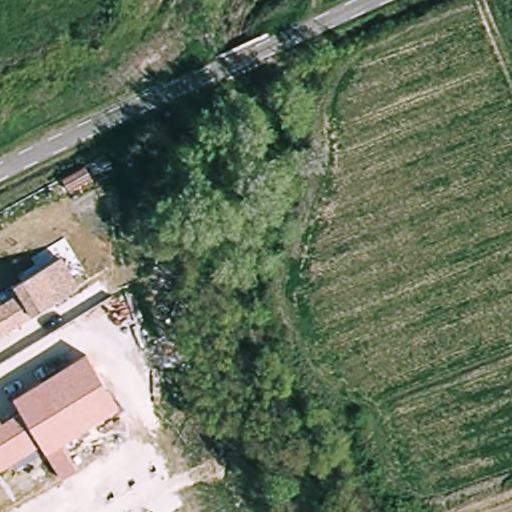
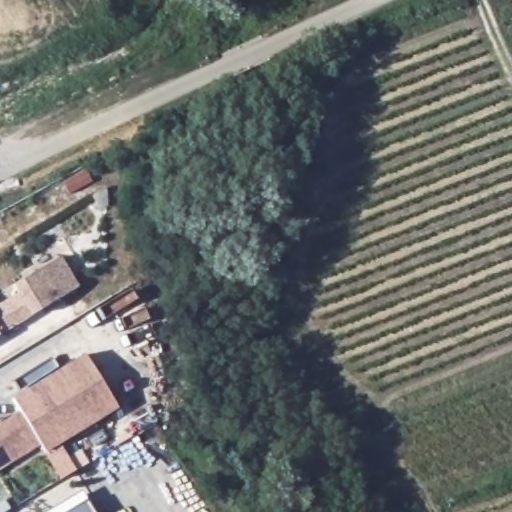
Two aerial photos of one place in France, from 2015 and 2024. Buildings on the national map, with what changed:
unchanged [(81,287),(33,312),(0,333),(0,300),(15,290),(12,287),(61,257),(81,287)]
unchanged [(88,355),(118,409),(61,445),(76,470),(62,478),(46,453),(40,443),(0,470),(0,421),(2,425),(20,410),(15,398),(88,355)]
new [(93,512),(62,512),(85,498),(93,512)]

